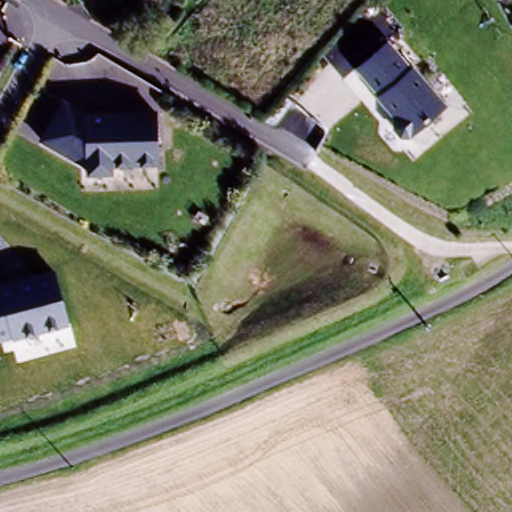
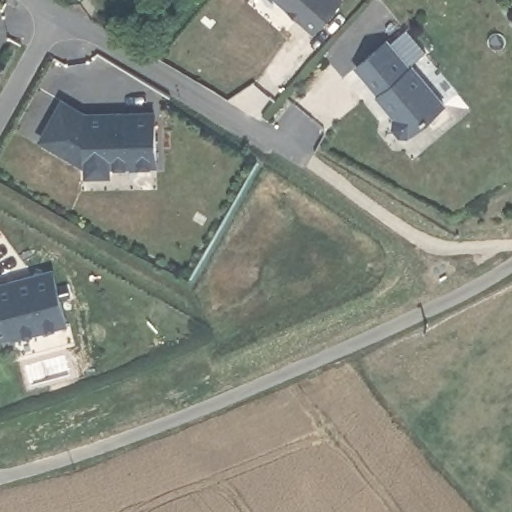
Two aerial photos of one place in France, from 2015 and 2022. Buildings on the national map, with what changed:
new [(342,2),(314,38),(275,0),(339,0),(342,2)]
unchanged [(451,105),(411,139),(355,69),(392,39),(451,105)]
unchanged [(86,170),(42,140),(65,105),(85,117),(156,118),(158,169),(112,168),(110,176),(86,176),(86,170)]
unchanged [(69,326),(11,341),(10,338),(0,341),(0,283),(55,270),(69,326)]

